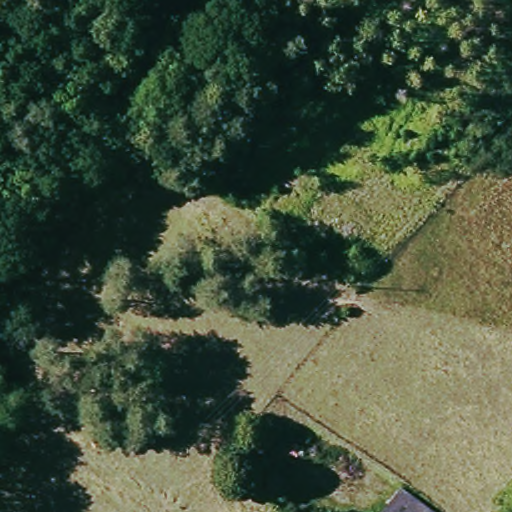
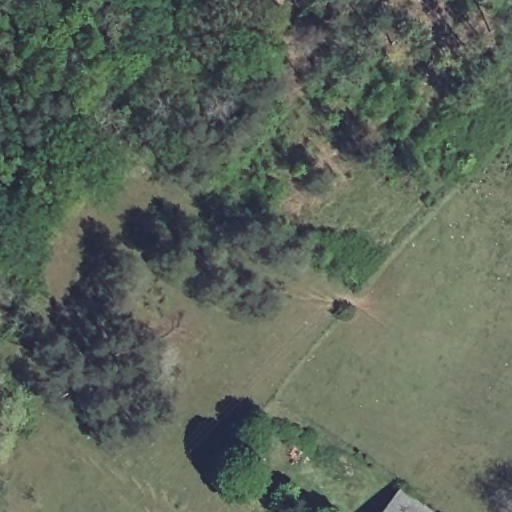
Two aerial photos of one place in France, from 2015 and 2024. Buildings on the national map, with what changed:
unchanged [(400,489),(430,512),(382,512),(400,489)]

